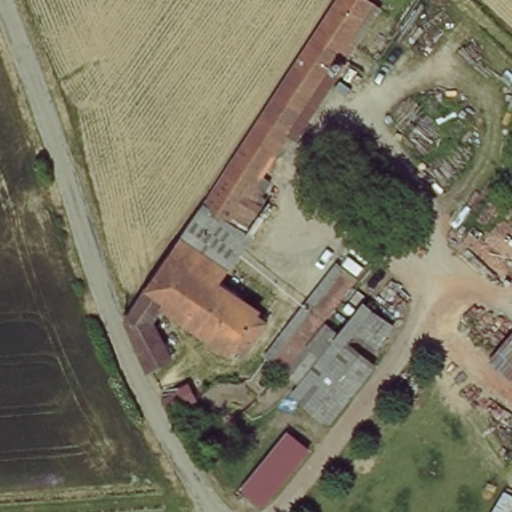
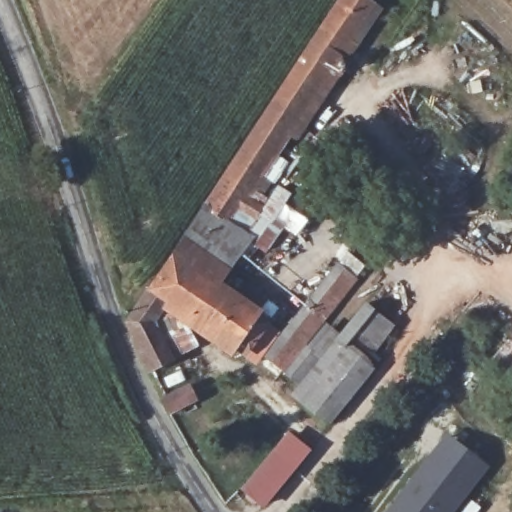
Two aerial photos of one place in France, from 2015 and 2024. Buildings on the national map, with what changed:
unchanged [(350,43),(323,24),(339,0),(377,0),(350,43)]
unchanged [(235,215),(208,196),(283,84),(323,24),(350,43),(308,110),(235,215)]
unchanged [(235,215),(230,222),(247,236),(222,266),(184,231),(208,196),(235,215)]
unchanged [(222,266),(207,283),(261,335),(242,356),(234,349),(228,354),(169,298),(155,316),(172,349),(151,365),(140,340),(130,313),(174,247),(184,231),(222,266)]
unchanged [(301,406),(289,397),(297,385),(263,359),(334,263),(353,277),(306,340),(323,354),(332,344),(359,309),(370,318),(384,329),(372,345),(358,334),(344,352),(366,370),(324,426),(301,406)]
unchanged [(494,359),(510,337),(512,339),(512,375),(499,364),(494,359)]
unchanged [(186,387),(194,400),(174,415),(167,402),(186,387)]
unchanged [(316,441),(285,483),(262,464),(292,422),(316,441)]
new [(444,441),(456,450),(482,470),(449,512),(389,512),(425,465),(444,441)]

